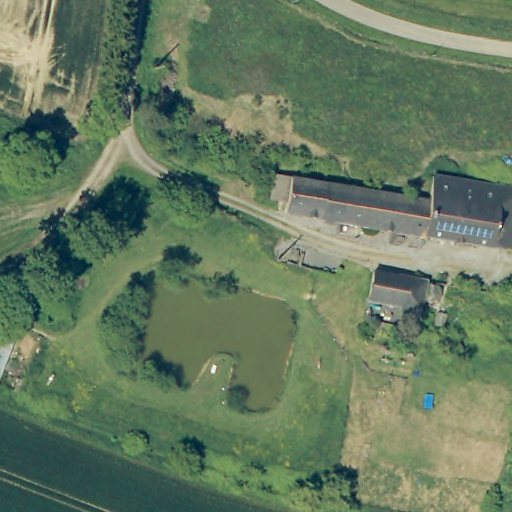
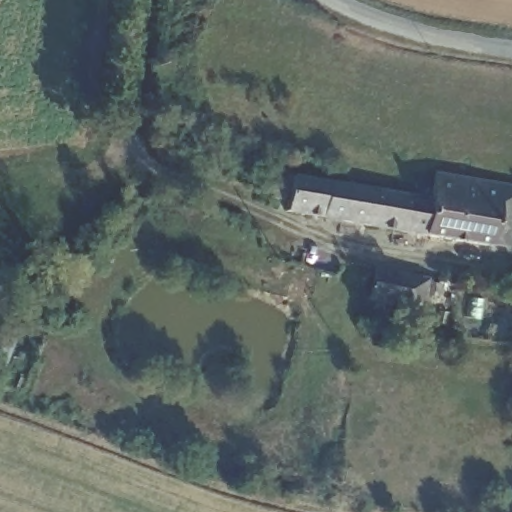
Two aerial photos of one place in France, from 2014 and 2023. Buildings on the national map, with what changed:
unchanged [(284,211),(286,200),(267,197),(268,186),(260,185),(262,170),(290,175),(401,193),(403,180),(430,185),(432,174),(498,184),(490,241),(490,248),(284,211)]
unchanged [(512,186),(512,244),(490,241),(498,184),(512,186)]
unchanged [(373,274),(440,286),(442,291),(441,298),(435,302),(425,300),(421,321),(400,318),(401,308),(370,301),(373,274)]

